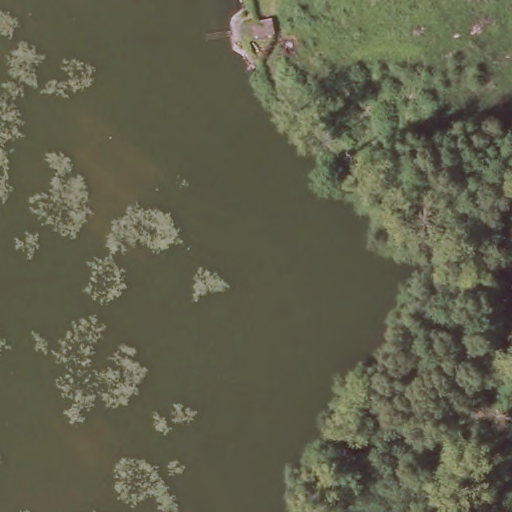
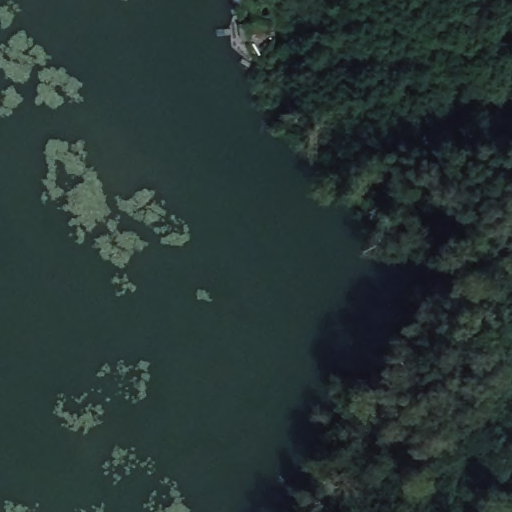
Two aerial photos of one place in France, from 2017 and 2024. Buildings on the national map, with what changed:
unchanged [(248,23),(258,37),(248,43),(238,31),(248,23)]

